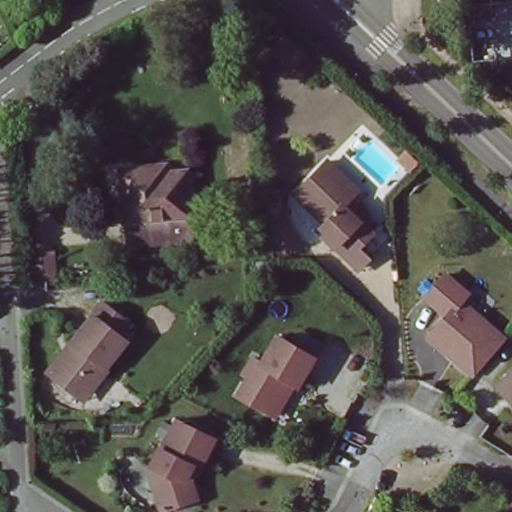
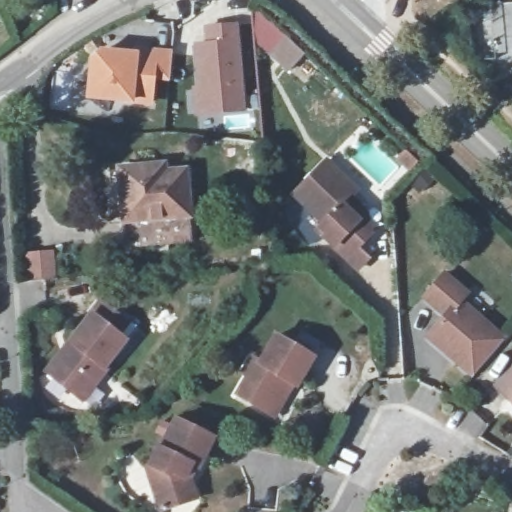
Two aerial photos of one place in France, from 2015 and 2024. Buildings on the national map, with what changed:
new [(238,23),(247,113),(195,116),(192,86),(196,86),(192,44),(205,43),(203,27),(238,23)]
new [(89,64),(96,57),(130,60),(131,55),(168,58),(166,83),(150,82),(147,107),(86,103),(89,64)]
unchanged [(165,152),(165,160),(184,158),(190,229),(130,233),(127,211),(122,211),(118,156),(165,152)]
unchanged [(318,217),(322,214),(291,186),(323,152),(353,181),(346,188),(360,201),(368,222),(355,236),(367,247),(356,259),(322,229),(315,221),(318,217)]
unchanged [(53,273),(21,277),(19,249),(51,245),(53,273)]
unchanged [(420,329),(436,309),(416,291),(435,268),(457,287),(451,295),(496,332),(467,368),(420,329)]
unchanged [(75,387),(46,366),(60,347),(65,350),(69,344),(64,340),(90,307),(97,296),(121,314),(113,325),(122,332),(101,359),(105,362),(92,378),(82,393),(75,387)]
unchanged [(263,406),(233,389),(243,372),(237,368),(246,354),(251,357),(255,359),(271,331),(308,353),(290,380),(288,379),(269,409),(263,406)]
unchanged [(492,384),(512,364),(512,403),(507,399),(492,384)]
unchanged [(209,430),(195,461),(188,457),(181,471),(185,472),(191,490),(155,503),(148,483),(157,465),(143,458),(152,440),(155,442),(169,412),(209,430)]

